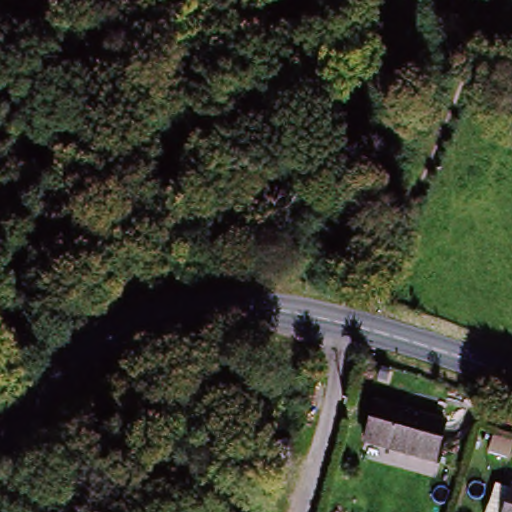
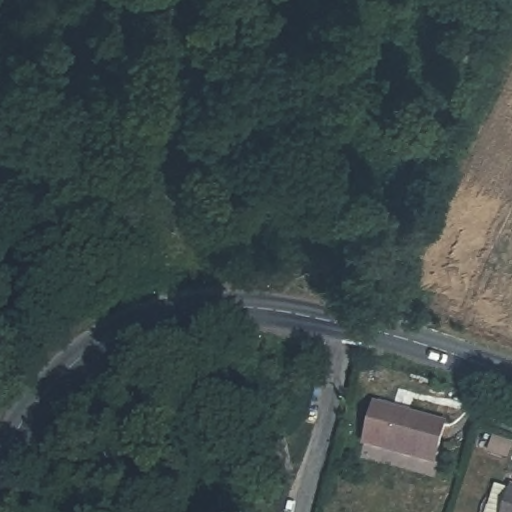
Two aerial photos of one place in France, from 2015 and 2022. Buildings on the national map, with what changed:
unchanged [(447,427),(435,463),(363,441),(376,405),(447,427)]
unchanged [(510,451),(504,467),(485,461),(490,446),(510,451)]
unchanged [(505,491),(512,493),(512,512),(482,512),(491,487),(505,491)]

